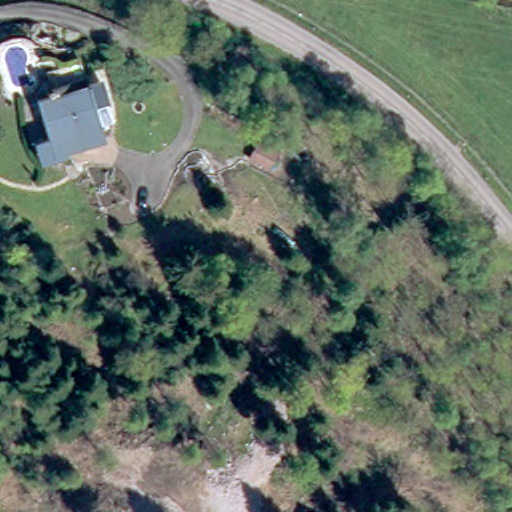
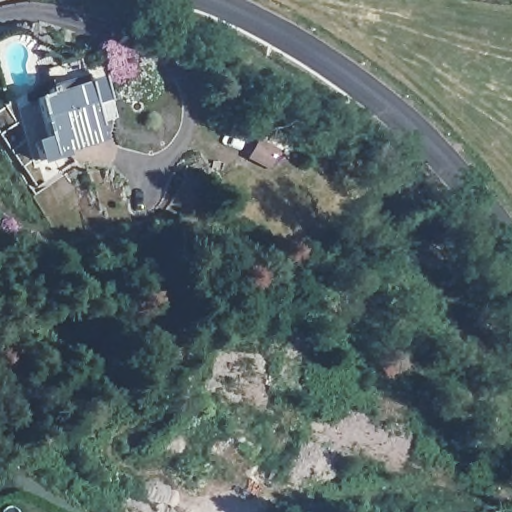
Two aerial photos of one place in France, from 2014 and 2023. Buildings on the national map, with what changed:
unchanged [(39,103),(52,97),(55,104),(90,90),(93,96),(104,91),(118,121),(103,127),(109,140),(87,150),(55,141),(39,103)]

